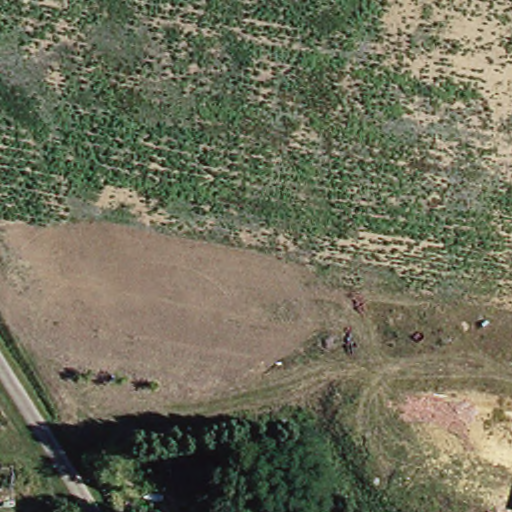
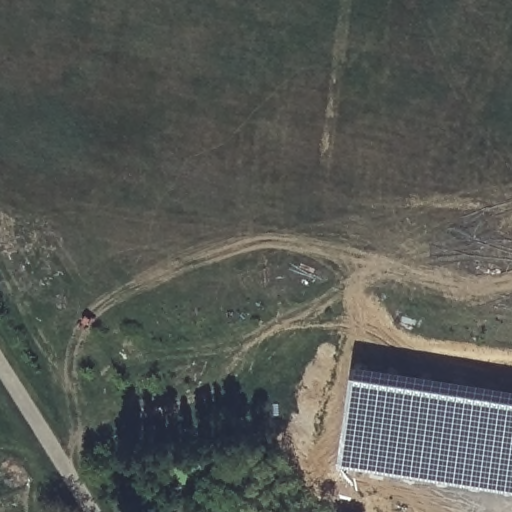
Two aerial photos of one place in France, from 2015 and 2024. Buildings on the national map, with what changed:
new [(512,392),(512,495),(338,467),(355,366),(512,392)]

